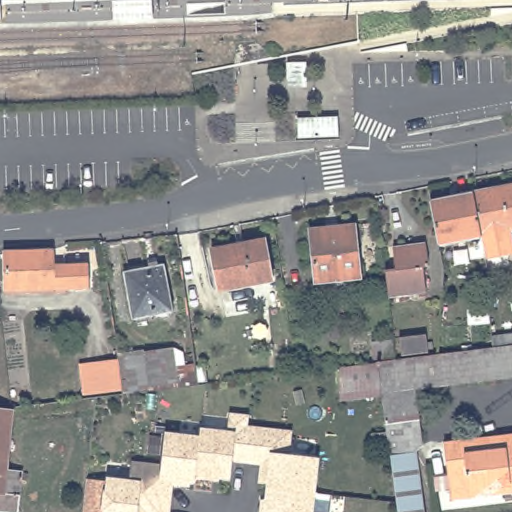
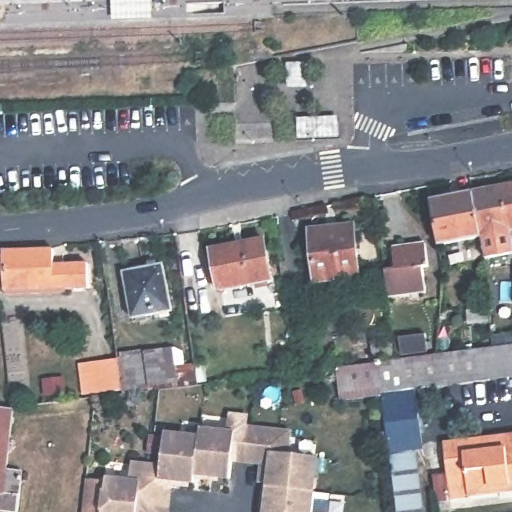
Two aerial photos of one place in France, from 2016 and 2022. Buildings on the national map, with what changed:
unchanged [(484,236),(475,192),(512,185),(512,231),(484,236)]
unchanged [(447,198),(475,192),(484,236),(485,237),(441,246),(432,201),(447,198)]
unchanged [(357,226),(361,278),(316,282),(312,229),(357,226)]
unchanged [(484,236),(511,231),(512,234),(512,253),(487,257),(484,236)]
unchanged [(267,242),(273,281),(220,290),(214,250),(267,242)]
unchanged [(397,268),(396,247),(428,243),(431,266),(426,267),(428,291),(391,295),(387,269),(397,268)]
unchanged [(6,250),(56,248),(57,264),(66,264),(91,263),(91,288),(67,289),(67,291),(7,293),(6,250)]
unchanged [(166,266),(174,312),(135,319),(127,273),(166,266)]
unchanged [(430,338),(431,355),(404,358),(402,340),(430,338)]
unchanged [(177,368),(204,364),(206,380),(170,386),(151,389),(145,353),(174,347),(177,368)]
unchanged [(117,359),(116,352),(136,349),(142,389),(123,392),(82,394),(79,362),(117,359)]
unchanged [(512,351),(512,381),(417,392),(421,423),(386,427),(383,397),(379,366),(512,351)]
unchanged [(379,366),(383,397),(342,402),(338,371),(379,366)]
unchanged [(17,411),(10,470),(25,472),(20,512),(8,512),(0,511),(0,410),(14,411),(17,411)]
unchanged [(267,508),(270,488),(271,478),(264,478),(263,477),(265,464),(234,460),(232,479),(231,478),(215,477),(215,480),(197,478),(197,479),(196,483),(182,482),(182,486),(173,485),(170,507),(170,512),(104,512),(108,479),(131,482),(134,463),(163,467),(166,433),(201,437),(202,431),(230,434),(231,416),(249,418),(247,428),(252,429),(292,434),(290,456),(319,459),(315,493),(313,512),(263,512),(263,508),(267,508)]
unchanged [(432,512),(398,512),(386,427),(421,423),(432,512)]
unchanged [(450,477),(445,441),(466,438),(467,445),(506,441),(505,433),(512,433),(512,492),(470,496),(452,498),(450,477)]

